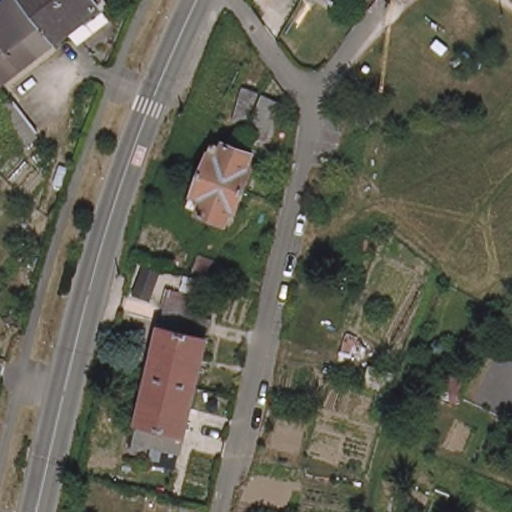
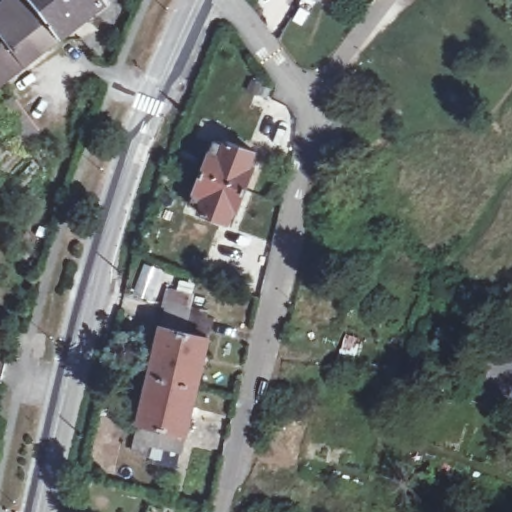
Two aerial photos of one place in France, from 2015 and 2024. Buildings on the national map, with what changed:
unchanged [(55,39),(37,52),(2,4),(6,0),(26,0),(47,27),(55,39)]
unchanged [(26,0),(98,0),(101,5),(62,34),(55,39),(47,27),(26,0)]
unchanged [(37,52),(0,80),(0,47),(7,42),(0,33),(0,5),(2,4),(37,52)]
unchanged [(12,131),(17,127),(13,122),(10,119),(2,107),(13,97),(23,109),(29,116),(32,120),(40,130),(27,141),(22,145),(17,140),(12,131)]
unchanged [(194,205),(217,145),(227,149),(230,145),(257,155),(250,174),(255,176),(242,208),(238,206),(230,225),(203,214),(205,210),(194,205)]
unchanged [(210,340),(188,436),(143,425),(165,330),(210,340)]

